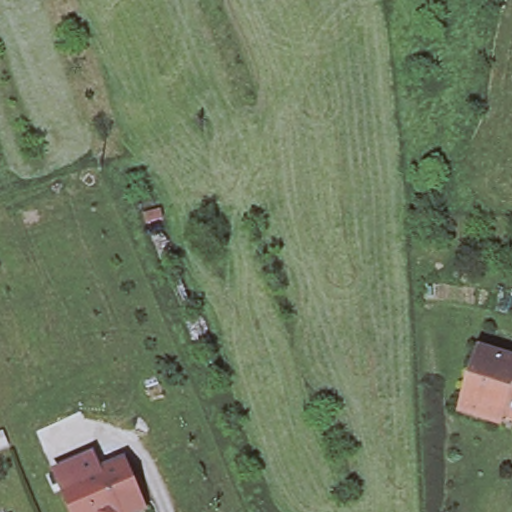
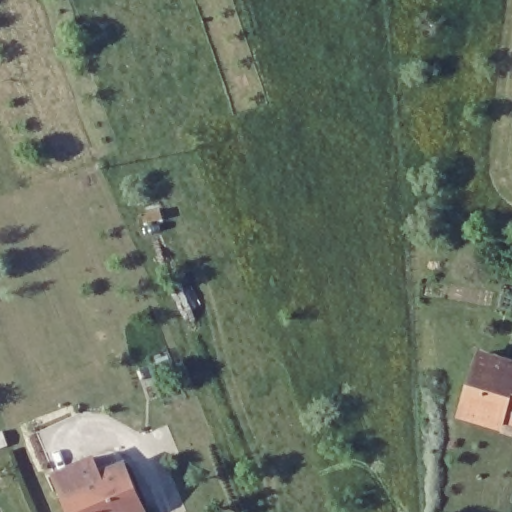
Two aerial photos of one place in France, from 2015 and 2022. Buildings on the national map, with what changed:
unchanged [(512,370),(512,427),(494,422),(492,430),(454,417),(473,357),(512,370)]
unchanged [(144,511),(141,512),(72,512),(55,473),(73,466),(93,457),(100,473),(123,463),(125,463),(143,506),(146,510),(144,511)]

